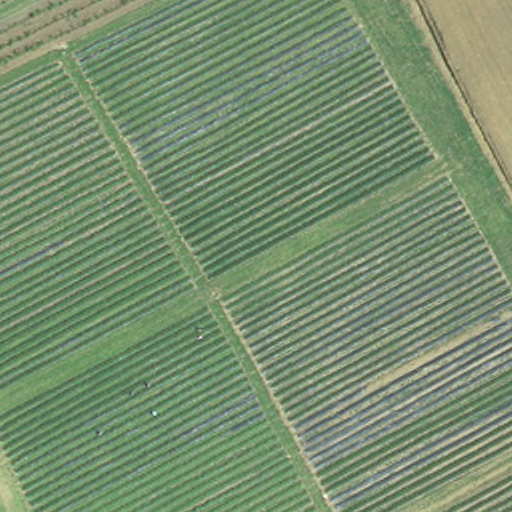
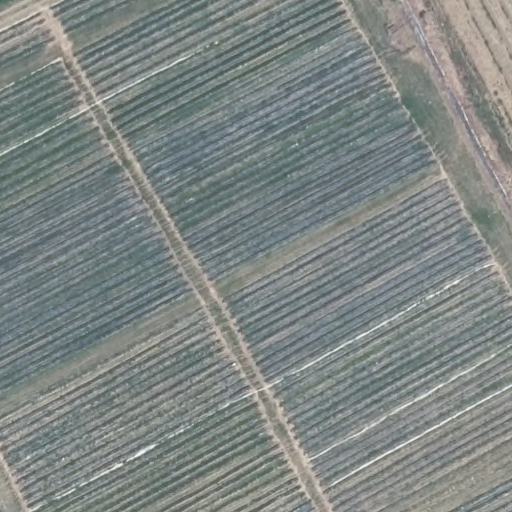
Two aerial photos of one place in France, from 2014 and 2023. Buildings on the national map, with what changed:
[]

